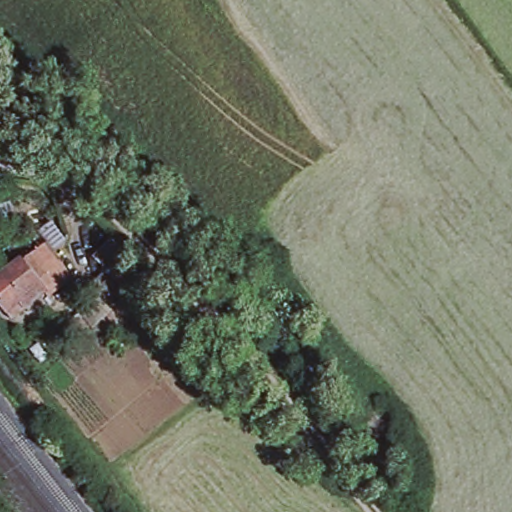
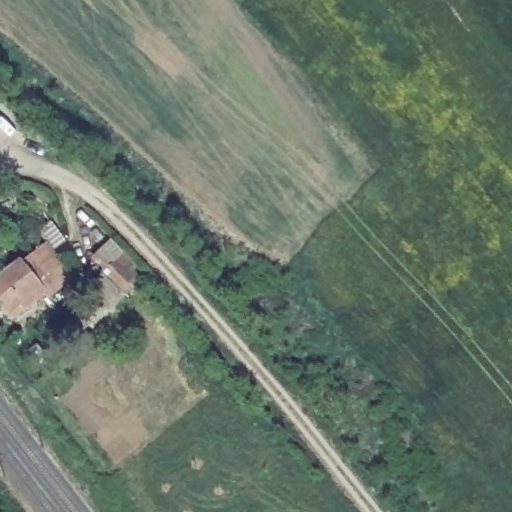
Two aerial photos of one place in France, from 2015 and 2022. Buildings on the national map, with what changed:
unchanged [(27,244),(43,265),(34,272),(40,280),(7,306),(0,297),(0,265),(27,244)]
unchanged [(87,299),(82,294),(99,277),(124,251),(140,271),(118,294),(100,313),(89,324),(75,309),(87,299)]

